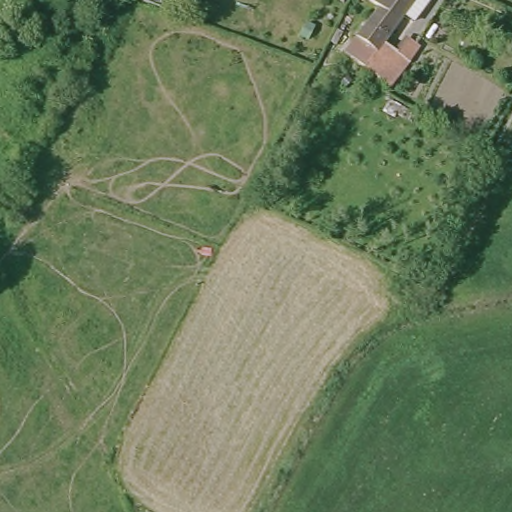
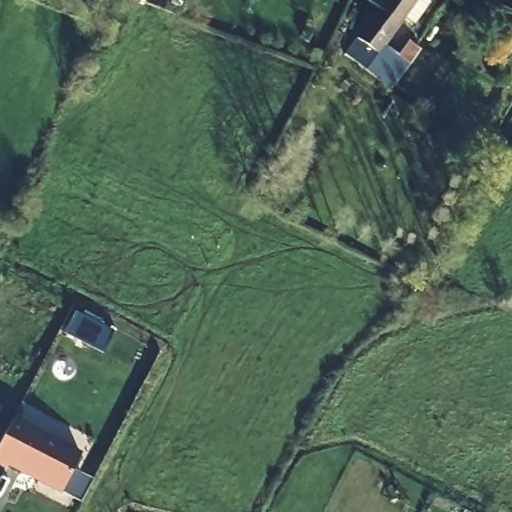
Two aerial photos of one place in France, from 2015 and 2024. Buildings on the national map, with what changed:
unchanged [(398,54),(407,41),(414,46),(417,48),(401,71),(388,88),(362,70),(370,61),(350,47),(380,5),(373,0),(415,0),(384,44),(398,54)]
new [(0,412),(0,405),(3,406),(0,412)]
new [(84,458),(65,495),(12,468),(10,471),(0,466),(0,452),(15,422),(84,458)]

